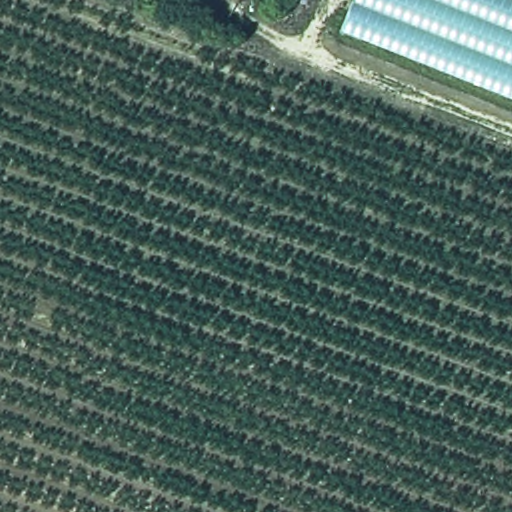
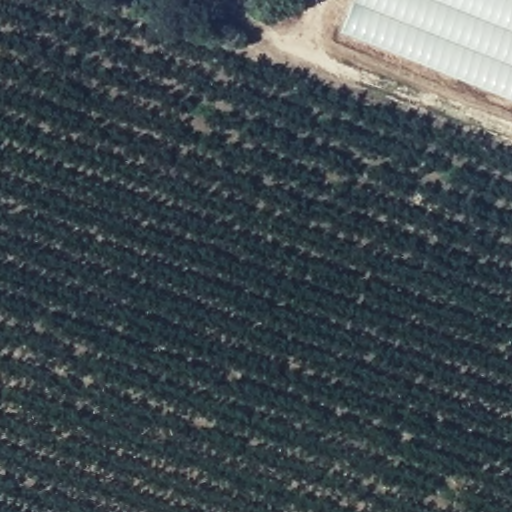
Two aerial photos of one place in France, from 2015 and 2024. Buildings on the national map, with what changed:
unchanged [(343,36),(357,0),(512,0),(512,105),(343,36)]

